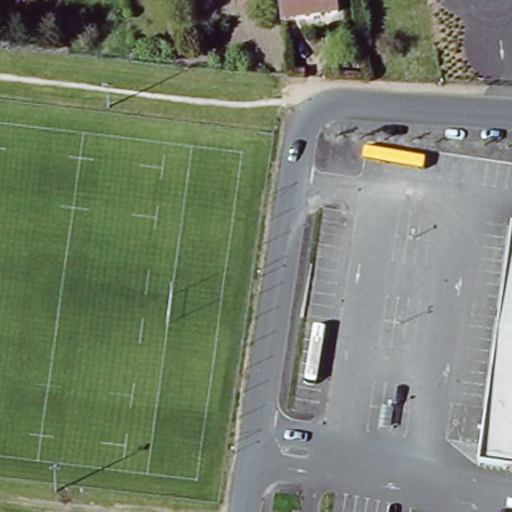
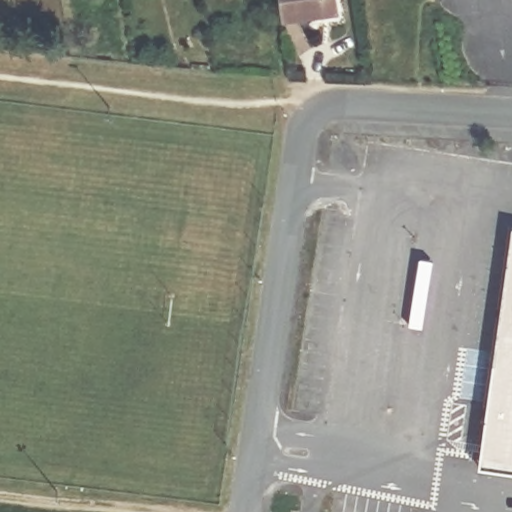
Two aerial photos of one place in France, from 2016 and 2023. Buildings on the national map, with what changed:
unchanged [(339,9),(282,17),(280,0),(337,0),(339,9)]
unchanged [(512,232),(512,454),(481,451),(507,231),(512,232)]
unchanged [(479,471),(481,451),(512,454),(512,475),(479,471)]

